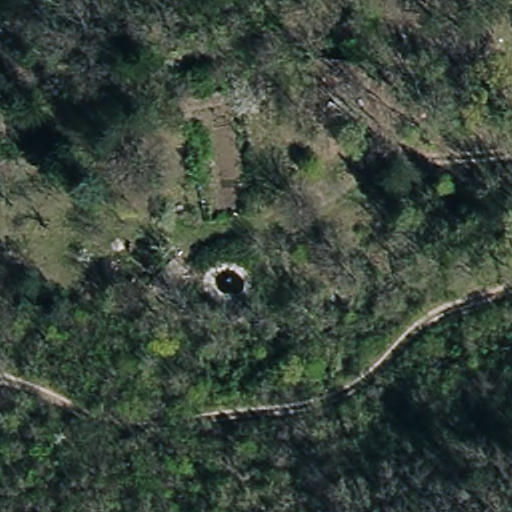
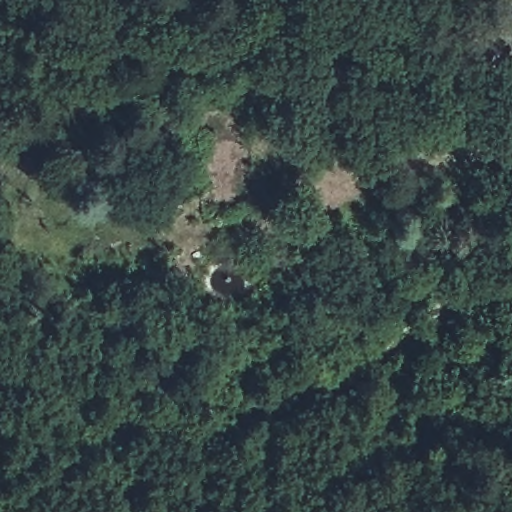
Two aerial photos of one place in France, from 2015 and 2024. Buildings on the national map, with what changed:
unchanged [(365,83),(337,81),(340,56),(368,60),(365,83)]
unchanged [(195,275),(168,302),(149,288),(177,258),(195,275)]

